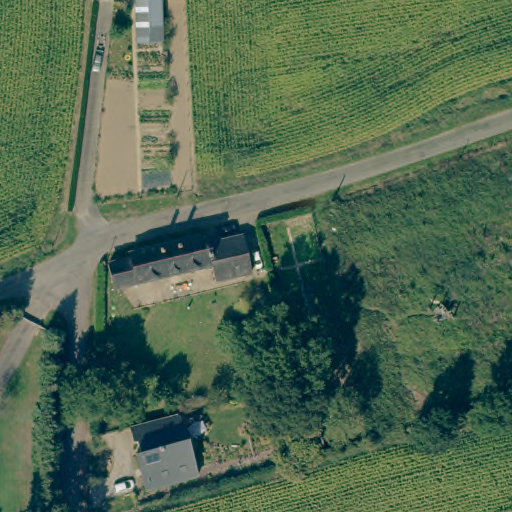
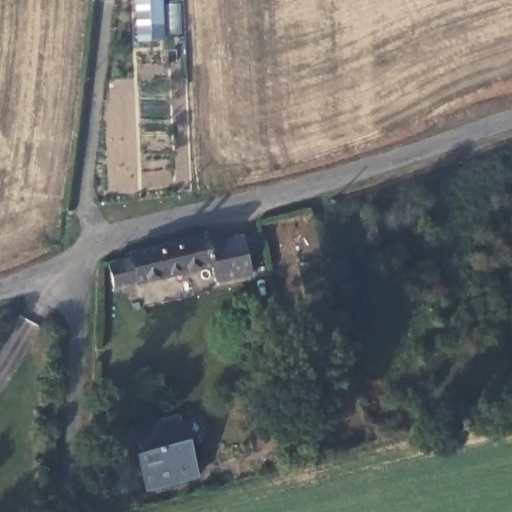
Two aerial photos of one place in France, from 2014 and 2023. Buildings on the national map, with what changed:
unchanged [(139,46),(135,0),(160,0),(163,45),(139,46)]
unchanged [(202,235),(204,248),(238,237),(247,268),(216,280),(209,263),(112,292),(104,270),(125,263),(128,257),(202,235)]
unchanged [(302,404),(320,401),(330,457),(311,462),(302,404)]
unchanged [(274,421),(287,418),(295,455),(296,467),(282,471),(280,453),(274,421)]
unchanged [(178,421),(182,431),(185,430),(199,477),(149,492),(136,456),(141,454),(138,445),(134,446),(129,430),(178,421)]

